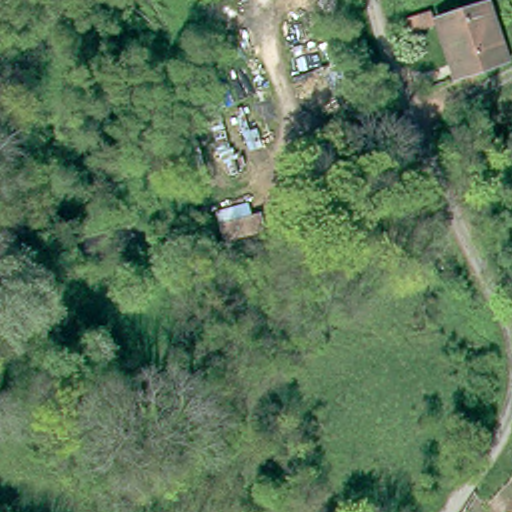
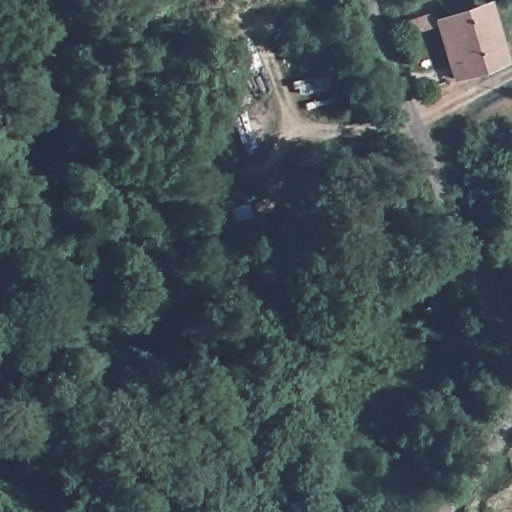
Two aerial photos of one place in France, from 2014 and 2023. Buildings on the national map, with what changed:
unchanged [(489,0),(511,61),(454,80),(432,14),(477,0),(489,0)]
unchanged [(423,22),(391,35),(385,20),(417,8),(423,22)]

